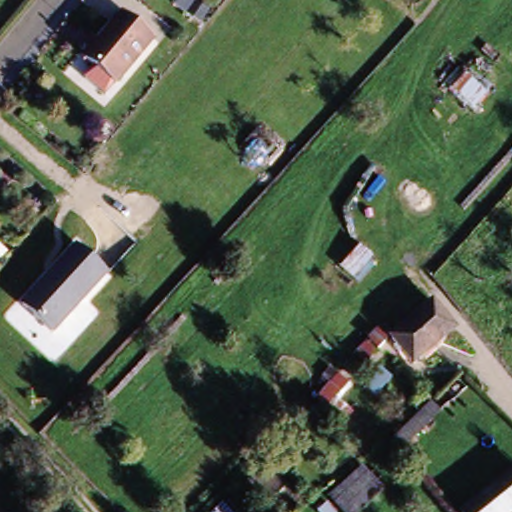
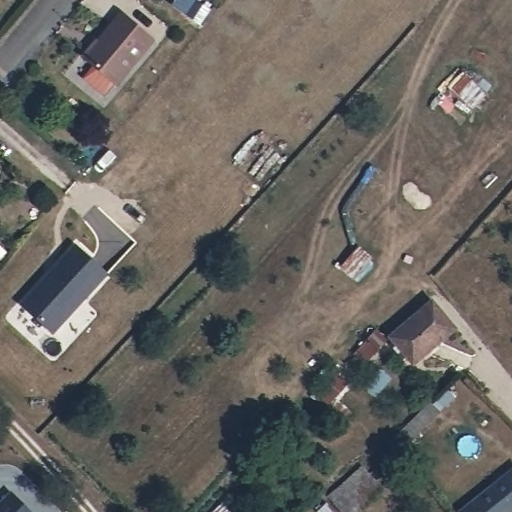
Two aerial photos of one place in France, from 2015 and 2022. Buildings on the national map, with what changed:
unchanged [(152,40),(116,86),(115,84),(104,97),(82,79),(92,66),(83,59),(120,13),(152,40)]
unchanged [(110,276),(55,335),(22,308),(76,247),(110,276)]
unchanged [(435,303),(457,331),(410,366),(386,336),(435,303)]
unchanged [(381,487),(354,512),(340,512),(325,498),(360,465),(381,487)]
unchanged [(461,512),(460,511),(512,474),(512,508),(507,512),(461,512)]
new [(29,512),(0,512),(0,505),(12,494),(29,512)]

